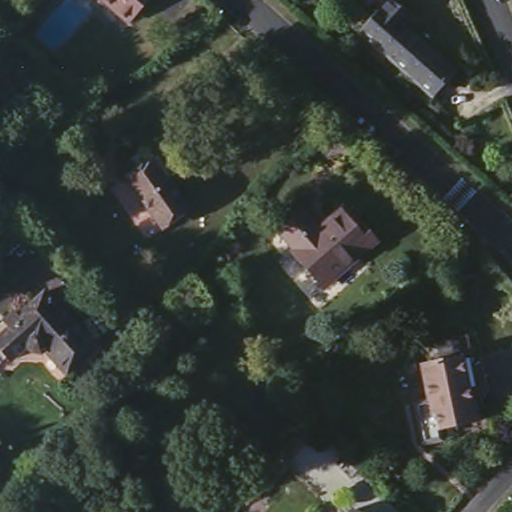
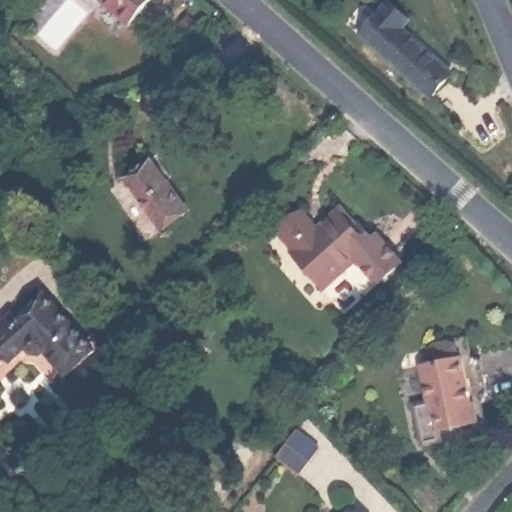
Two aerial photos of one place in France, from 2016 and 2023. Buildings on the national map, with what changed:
unchanged [(114,25),(86,0),(137,0),(114,25)]
unchanged [(385,3),(403,21),(398,27),(449,73),(430,95),(360,32),(385,3)]
unchanged [(187,210),(160,225),(129,175),(155,158),(187,210)]
unchanged [(355,254),(355,255),(355,256),(354,256),(354,257),(353,257),(353,258),(353,259),(352,259),(352,260),(351,260),(351,261),(350,261),(349,262),(348,262),(347,262),(346,262),(346,263),(345,263),(343,263),(322,281),(292,247),(295,245),(278,225),(302,203),(318,222),(321,219),(342,198),(362,218),(376,234),(355,253),(355,254)]
unchanged [(66,376),(46,352),(42,355),(37,356),(32,355),(26,350),(14,360),(0,342),(0,337),(25,318),(23,315),(49,293),(95,353),(66,376)]
unchanged [(476,401),(479,400),(483,419),(444,428),(437,399),(432,400),(425,364),(466,355),(476,401)]
unchanged [(144,412),(161,393),(171,402),(155,421),(144,412)]
unchanged [(357,512),(353,512),(355,510),(357,512)]

